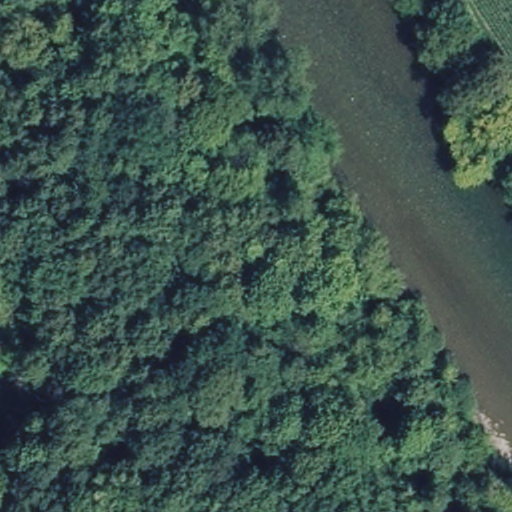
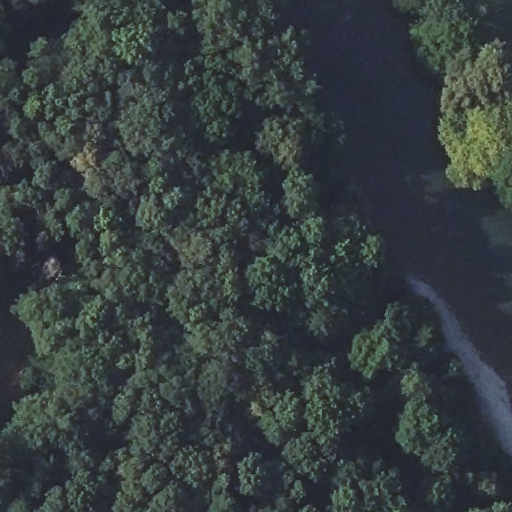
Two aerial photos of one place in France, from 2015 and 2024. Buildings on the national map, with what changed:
[]

